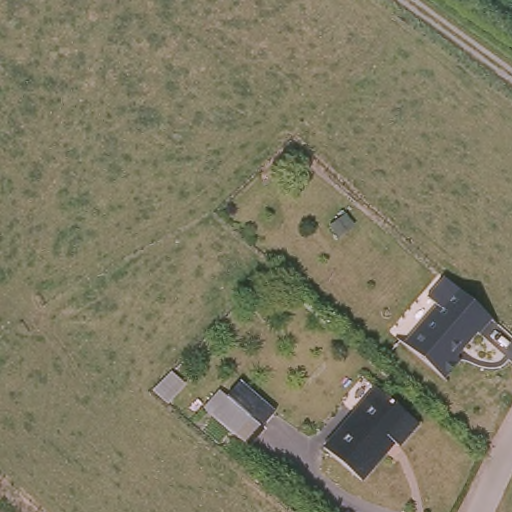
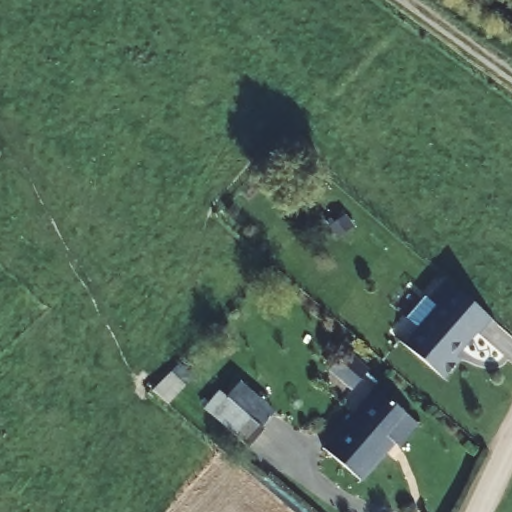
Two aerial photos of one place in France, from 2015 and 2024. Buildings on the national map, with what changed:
unchanged [(472,332),(470,330),(449,355),(453,358),(437,377),(395,340),(428,301),(421,296),(438,276),(455,292),(485,317),(472,332)]
unchanged [(179,388),(164,405),(150,393),(165,376),(179,388)]
unchanged [(415,421),(396,444),(392,441),(359,478),(322,446),(374,386),(415,421)]
unchanged [(242,446),(207,415),(200,408),(215,391),(223,398),(259,429),(242,446)]

